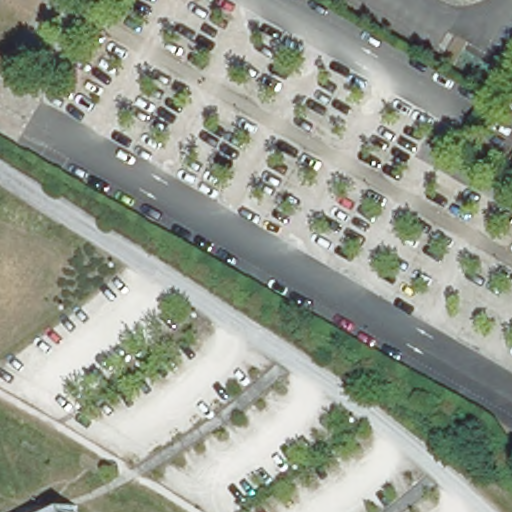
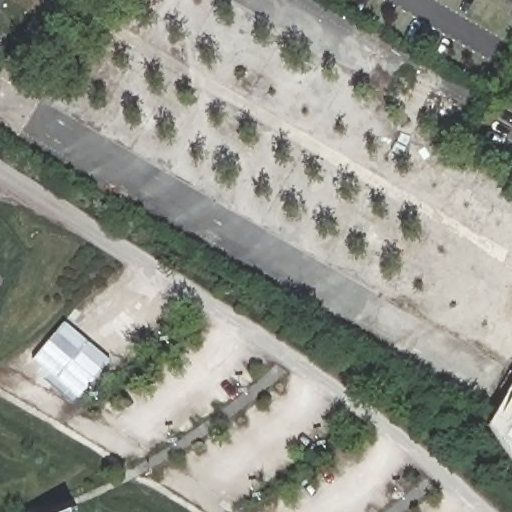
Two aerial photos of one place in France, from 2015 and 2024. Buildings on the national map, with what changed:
new [(45,380),(50,374),(32,359),(63,322),(110,361),(73,404),(45,380)]
new [(512,389),(512,460),(489,429),(512,389)]
unchanged [(72,505),(73,512),(54,512),(72,505)]

